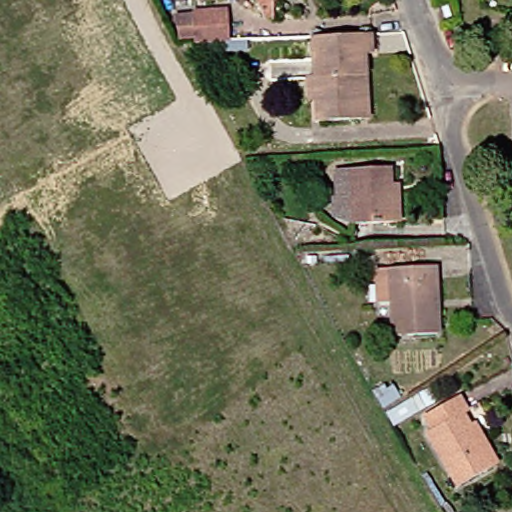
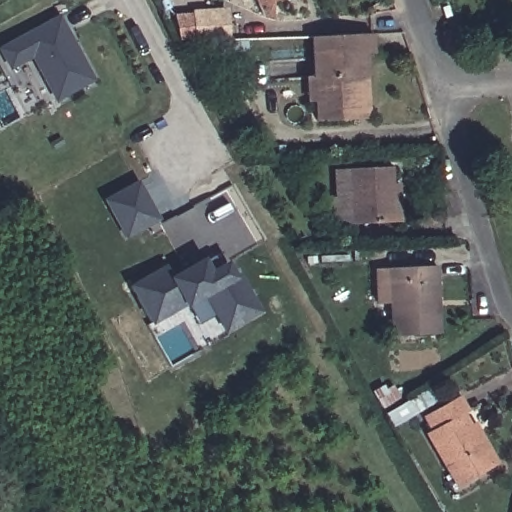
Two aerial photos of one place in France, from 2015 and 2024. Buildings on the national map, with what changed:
new [(267,19),(259,0),(279,0),(284,10),(267,19)]
unchanged [(434,24),(428,6),(443,1),(449,17),(434,24)]
unchanged [(179,39),(178,10),(207,10),(209,38),(179,39)]
new [(62,16),(96,78),(60,99),(35,55),(13,67),(3,50),(62,16)]
unchanged [(348,119),(303,120),(302,98),(293,99),(292,74),(302,74),(299,35),(359,32),(360,51),(353,51),(354,73),(356,119),(348,119)]
unchanged [(389,221),(378,222),(337,225),(333,167),(374,165),(376,187),(387,186),(389,221)]
new [(141,182),(162,219),(130,236),(109,200),(141,182)]
new [(167,268),(173,278),(207,262),(209,264),(219,259),(224,270),(231,265),(239,280),(244,277),(264,315),(230,332),(210,296),(190,307),(189,305),(154,322),(134,286),(167,268)]
unchanged [(429,281),(424,281),(426,307),(430,307),(432,334),(382,336),(379,265),(428,262),(429,281)]
unchanged [(489,460),(481,465),(452,485),(414,431),(422,426),(414,413),(444,393),(453,407),(445,412),(455,426),(463,421),(489,460)]

